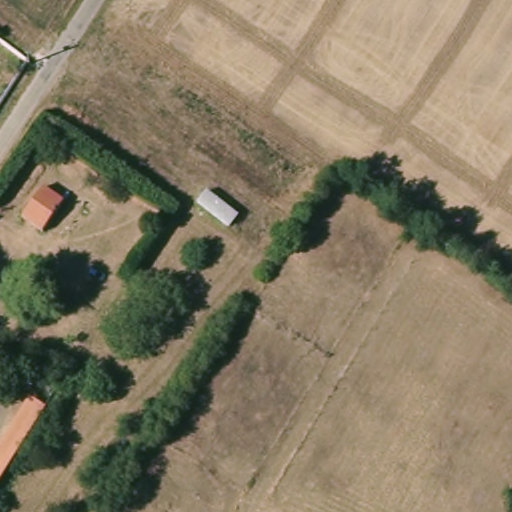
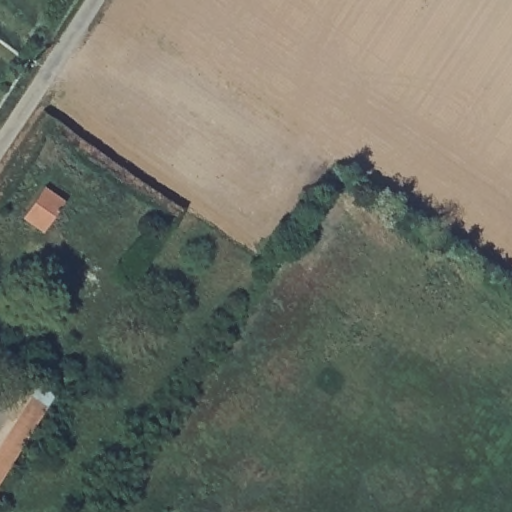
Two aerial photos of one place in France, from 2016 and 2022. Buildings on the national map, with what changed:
unchanged [(59,203),(40,235),(20,222),(40,190),(59,203)]
unchanged [(0,476),(0,442),(10,426),(25,436),(0,476)]

